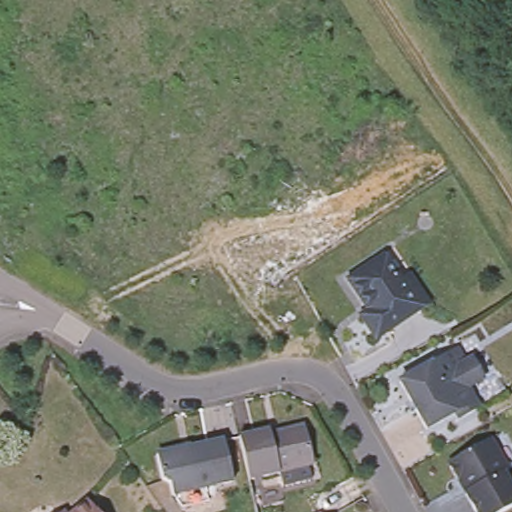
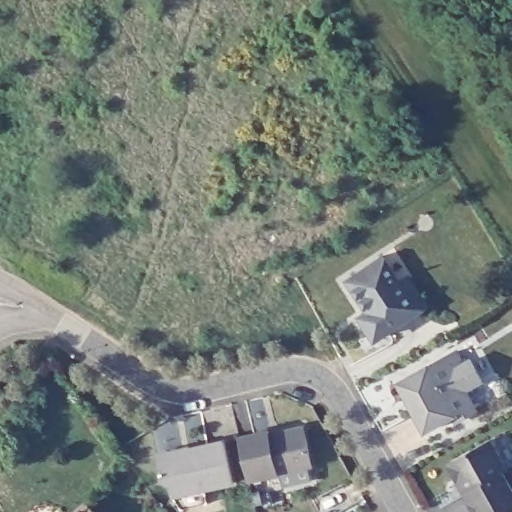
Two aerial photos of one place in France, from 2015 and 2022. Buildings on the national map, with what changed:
unchanged [(399,289),(407,283),(425,311),(415,317),(374,345),(359,322),(367,317),(345,285),(380,262),(399,289)]
unchanged [(481,380),(465,388),(475,410),(456,420),(454,415),(424,430),(399,381),(455,350),(462,363),(470,359),(481,380)]
unchanged [(265,430),(266,434),(302,425),(310,464),(247,479),(238,437),(265,430)]
unchanged [(180,509),(170,496),(167,485),(163,486),(161,480),(160,481),(154,457),(222,441),(231,481),(204,488),(207,503),(180,509)]
unchanged [(502,479),(512,498),(512,511),(510,512),(471,512),(463,499),(467,495),(462,486),(455,483),(447,472),(450,464),(487,445),(505,476),(502,479)]
unchanged [(98,512),(63,512),(85,495),(98,512)]
unchanged [(62,512),(53,512),(59,508),(62,512)]

